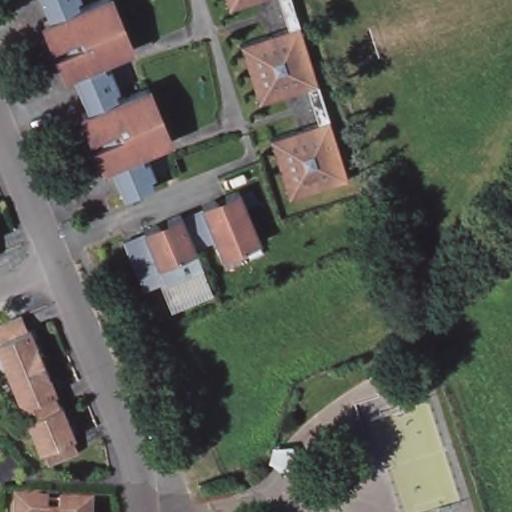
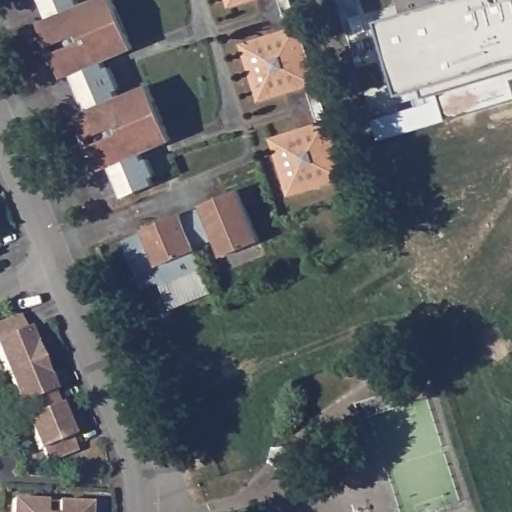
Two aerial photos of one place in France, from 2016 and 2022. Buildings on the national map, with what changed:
unchanged [(81,1),(76,3),(79,12),(109,0),(111,0),(133,55),(102,67),(106,77),(111,75),(118,92),(113,94),(116,101),(148,89),(169,143),(139,156),(142,165),(148,163),(155,179),(149,182),(151,187),(124,198),(111,168),(103,170),(97,154),(84,159),(76,137),(87,132),(81,116),(89,112),(73,76),(66,79),(59,62),(46,67),(37,45),(49,39),(42,23),(50,19),(42,0),(81,0),(81,1)]
unchanged [(225,5),(224,0),(243,0),(225,5)]
unchanged [(345,178),(286,196),(268,138),(316,123),(306,88),(257,103),(237,41),(287,26),(279,0),(290,0),(345,178)]
new [(448,117),(439,81),(400,93),(380,19),(447,0),(512,0),(512,99),(448,117)]
unchanged [(142,234),(140,230),(153,225),(157,228),(164,225),(164,220),(177,215),(179,219),(201,210),(200,205),(212,201),(215,204),(222,201),(223,196),(237,191),(258,242),(221,257),(212,237),(190,247),(192,252),(155,267),(153,262),(132,270),(121,243),(142,234)]
unchanged [(35,348),(39,347),(54,380),(50,382),(61,409),(65,407),(72,424),(69,426),(80,453),(50,466),(42,446),(36,448),(26,424),(31,421),(25,407),(20,408),(0,359),(0,334),(25,323),(35,348)]
unchanged [(44,501),(44,512),(11,512),(12,500),(44,501)]
unchanged [(92,504),(92,512),(57,512),(58,502),(92,504)]

